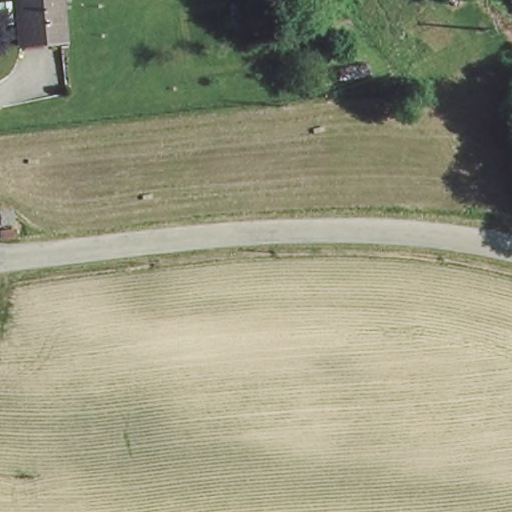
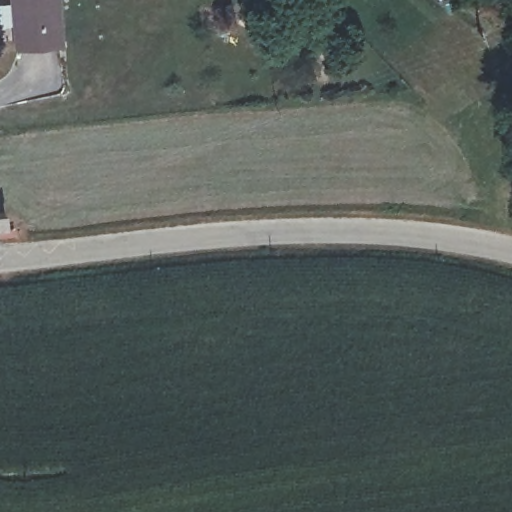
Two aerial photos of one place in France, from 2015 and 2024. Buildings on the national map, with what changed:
unchanged [(63,42),(21,43),(18,0),(62,0),(63,42)]

